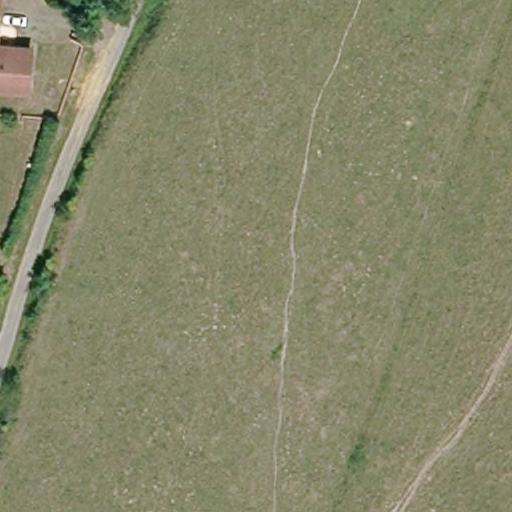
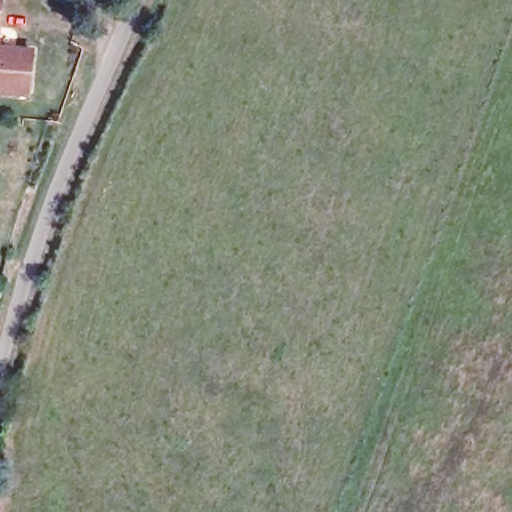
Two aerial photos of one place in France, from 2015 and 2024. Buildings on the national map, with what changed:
unchanged [(26,52),(20,97),(0,94),(0,48),(26,52)]

